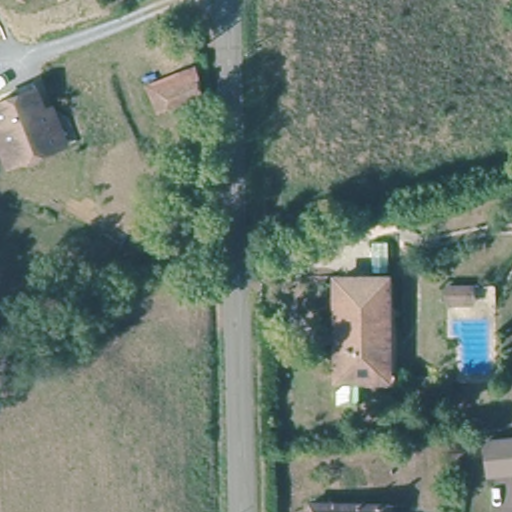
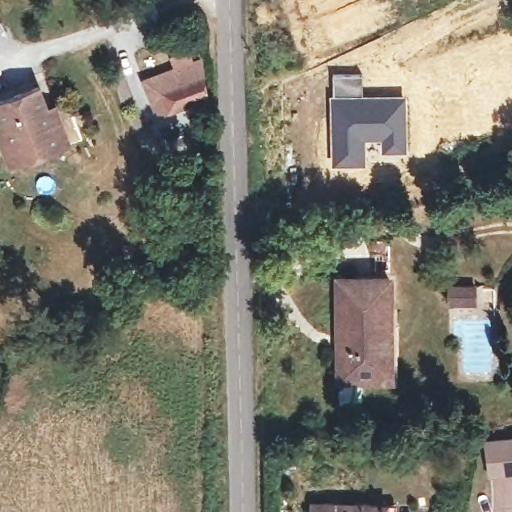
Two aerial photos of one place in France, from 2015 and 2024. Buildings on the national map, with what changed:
unchanged [(149,79),(193,64),(202,92),(160,106),(149,79)]
new [(363,99),(376,99),(376,102),(383,102),(383,99),(403,99),(405,150),(385,150),(385,137),(363,137),(363,164),(335,165),(334,118),(333,100),(333,75),(362,75),(363,99)]
unchanged [(0,122),(2,121),(0,113),(0,95),(38,84),(45,109),(55,105),(66,145),(56,147),(40,152),(40,155),(36,159),(25,163),(21,161),(20,157),(5,162),(0,147),(0,122)]
unchanged [(396,230),(397,262),(377,263),(378,231),(396,230)]
unchanged [(344,375),(343,273),(395,271),(394,372),(366,373),(366,382),(366,402),(341,400),(342,387),(349,387),(348,385),(347,375),(344,375)]
unchanged [(478,285),(478,302),(452,301),(452,285),(478,285)]
unchanged [(492,436),(512,434),(512,465),(497,466),(492,436)]
unchanged [(390,502),(390,512),(313,512),(313,502),(390,502)]

